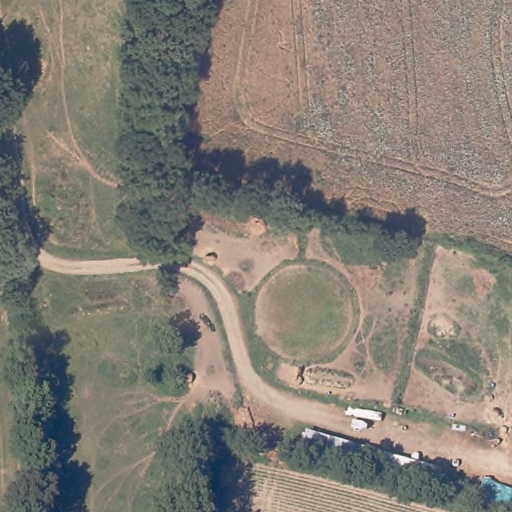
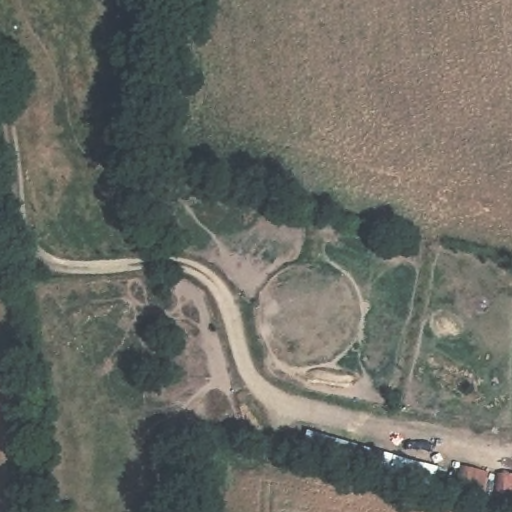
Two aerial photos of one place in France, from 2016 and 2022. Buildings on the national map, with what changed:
unchanged [(433,463),(432,470),(438,472),(435,486),(302,448),(307,427),(433,463)]

